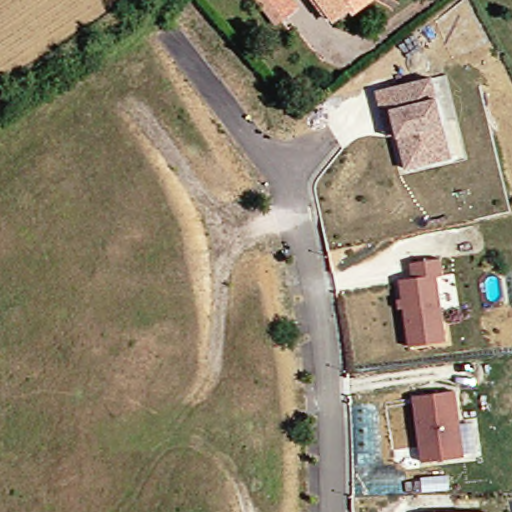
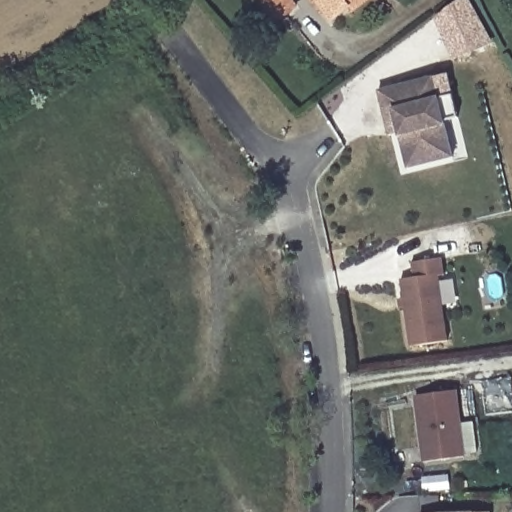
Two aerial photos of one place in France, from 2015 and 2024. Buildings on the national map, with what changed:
unchanged [(292,6),(269,23),(252,0),(287,0),(292,6)]
unchanged [(351,12),(348,7),(331,20),(316,0),(367,0),(351,12)]
new [(462,0),(468,0),(490,40),(458,57),(437,19),(462,0)]
unchanged [(369,91),(425,78),(443,157),(398,168),(390,134),(380,136),(375,113),(369,91)]
unchanged [(401,280),(414,278),(412,262),(442,258),(445,275),(439,276),(449,341),(411,347),(401,280)]
unchanged [(417,396),(457,390),(466,456),(426,462),(417,396)]

